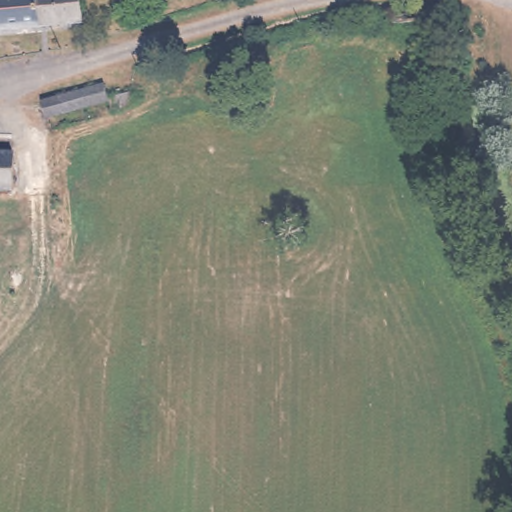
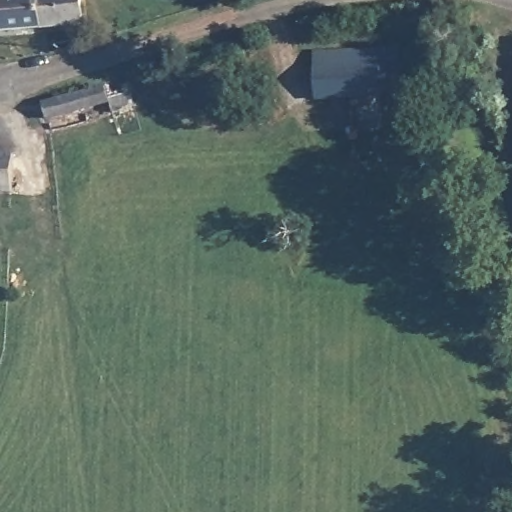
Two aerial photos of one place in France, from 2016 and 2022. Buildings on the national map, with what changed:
unchanged [(0,0),(81,0),(83,26),(0,35),(0,0)]
unchanged [(416,7),(419,21),(394,27),(392,11),(416,7)]
new [(314,49),(378,49),(381,96),(315,99),(314,49)]
unchanged [(40,101),(104,84),(109,99),(130,93),(136,111),(110,118),(108,107),(44,124),(40,101)]
unchanged [(11,192),(0,191),(0,150),(13,150),(11,192)]

